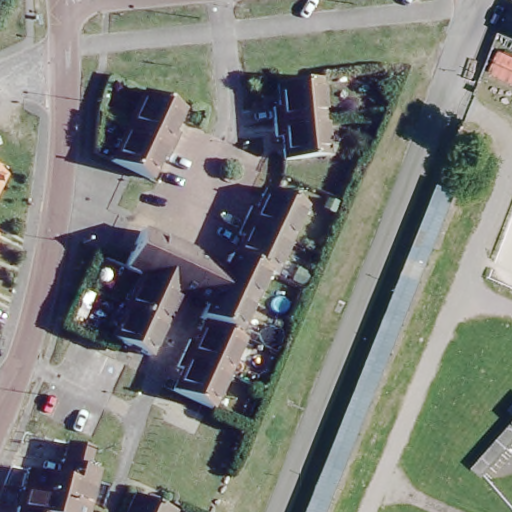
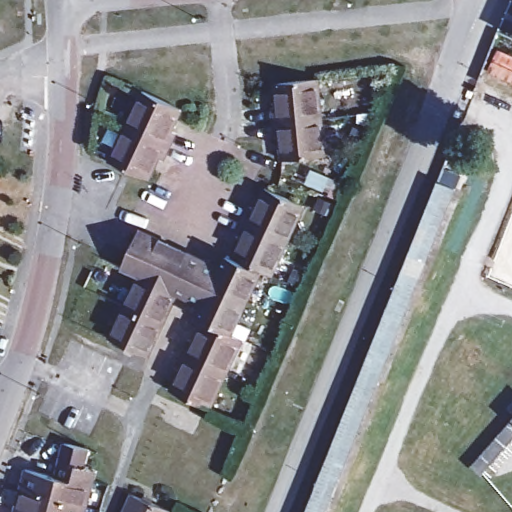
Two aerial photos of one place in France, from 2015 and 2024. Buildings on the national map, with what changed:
unchanged [(282,167),(280,144),(272,145),(268,106),(275,105),(272,79),(325,76),(332,160),(282,167)]
unchanged [(137,83),(185,104),(177,125),(183,128),(166,166),(158,163),(149,184),(101,164),(137,83)]
unchanged [(0,182),(0,172),(4,174),(0,182)]
unchanged [(162,388),(170,369),(165,367),(180,336),(185,338),(192,321),(188,319),(195,306),(178,298),(164,327),(149,360),(101,339),(129,275),(112,267),(133,219),(205,249),(217,254),(222,242),(227,244),(237,223),(230,220),(245,188),(252,191),(260,174),(308,196),(283,251),(272,277),(262,273),(238,326),(247,330),(222,386),(210,410),(162,388)]
unchanged [(435,186),(451,193),(352,439),(323,512),(304,512),(350,395),(435,186)]
unchanged [(508,401),(512,397),(512,405),(508,401)]
unchanged [(512,417),(512,435),(482,467),(473,459),(512,417)]
unchanged [(53,461),(57,447),(107,459),(93,512),(3,512),(3,509),(10,510),(20,468),(50,474),(53,461)]
unchanged [(182,505),(179,512),(122,512),(133,485),(182,505)]

